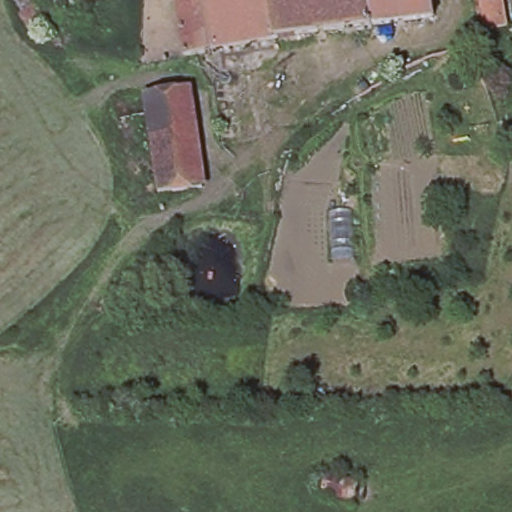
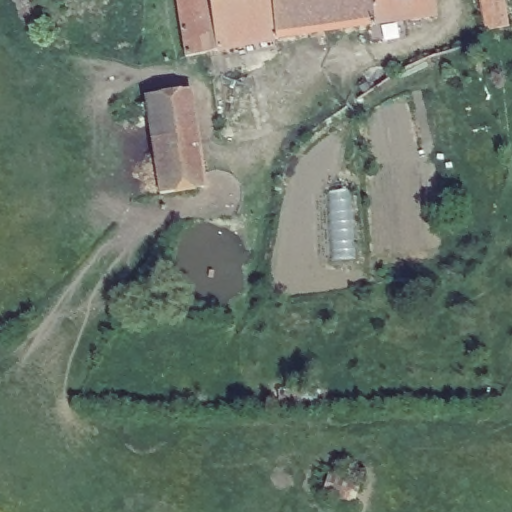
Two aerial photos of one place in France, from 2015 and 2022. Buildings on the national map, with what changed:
unchanged [(270,35),(187,53),(180,0),(370,0),(374,20),(270,35)]
unchanged [(374,20),(370,0),(437,0),(439,11),(374,20)]
unchanged [(479,22),(475,0),(498,0),(502,19),(479,22)]
unchanged [(199,83),(210,184),(155,194),(142,93),(199,83)]
unchanged [(317,496),(325,472),(362,482),(354,506),(317,496)]

